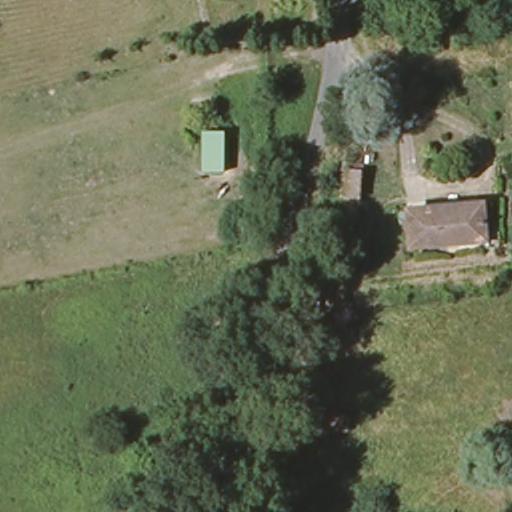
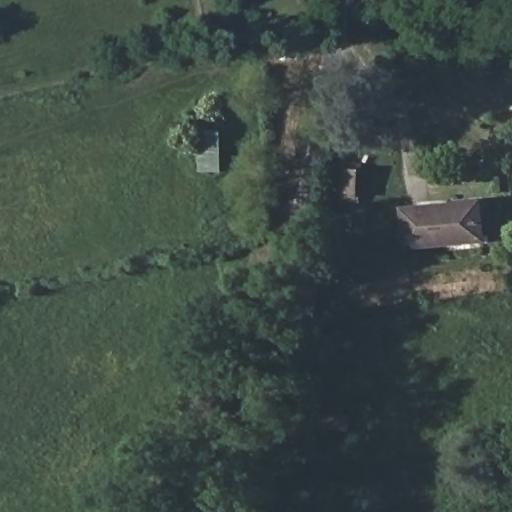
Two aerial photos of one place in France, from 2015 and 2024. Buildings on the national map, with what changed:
unchanged [(359,169),(356,197),(337,195),(340,168),(359,169)]
unchanged [(483,202),(486,239),(415,246),(413,210),(483,202)]
unchanged [(347,215),(347,230),(337,230),(337,215),(347,215)]
unchanged [(345,412),(347,431),(313,432),(312,414),(345,412)]

